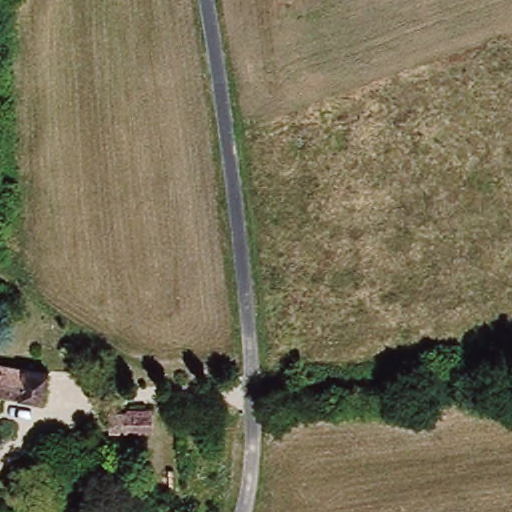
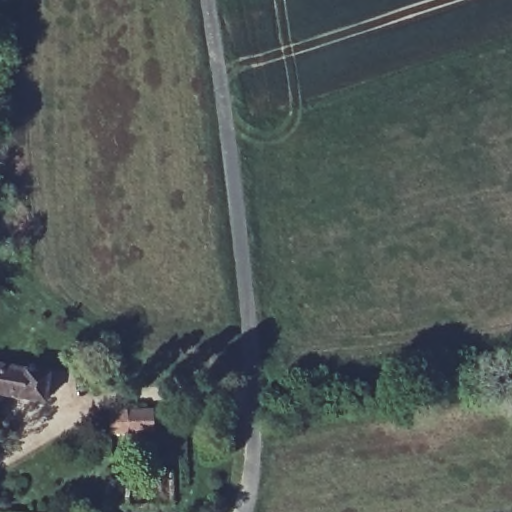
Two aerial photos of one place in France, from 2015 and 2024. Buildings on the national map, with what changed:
unchanged [(53,401),(36,399),(0,395),(0,364),(25,364),(37,366),(55,368),(53,401)]
unchanged [(157,428),(130,430),(116,431),(114,415),(156,413),(157,428)]

